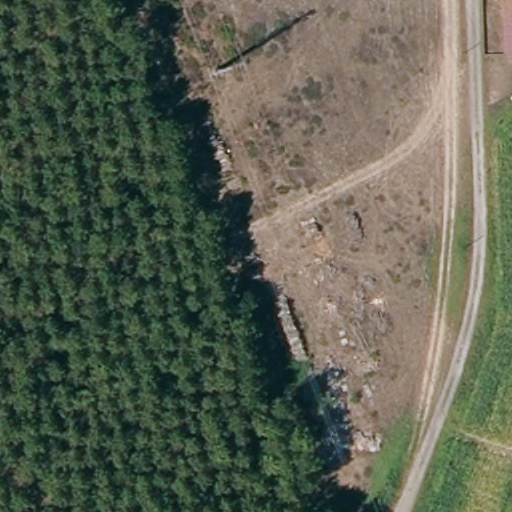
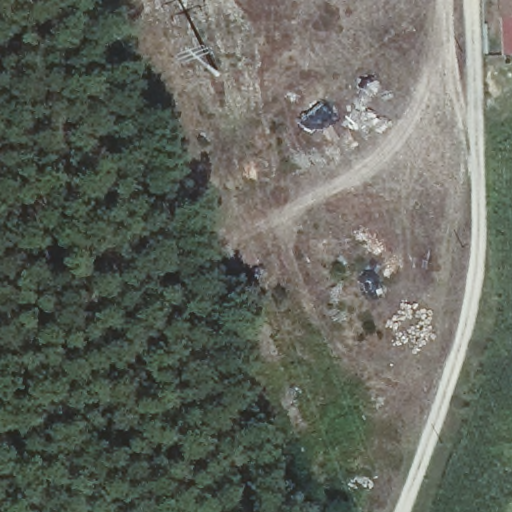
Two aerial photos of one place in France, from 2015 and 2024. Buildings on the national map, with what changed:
unchanged [(507,57),(503,0),(512,0),(512,57),(507,57)]

